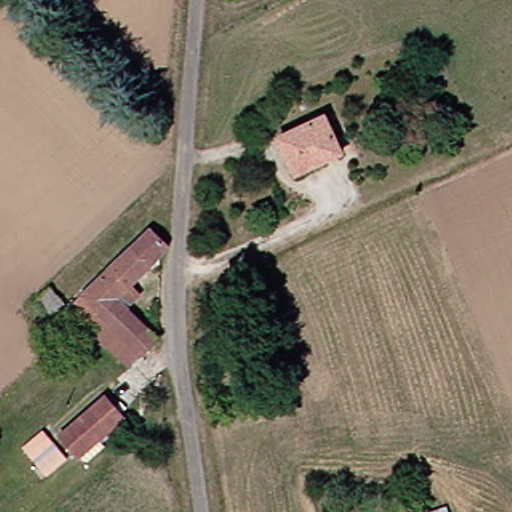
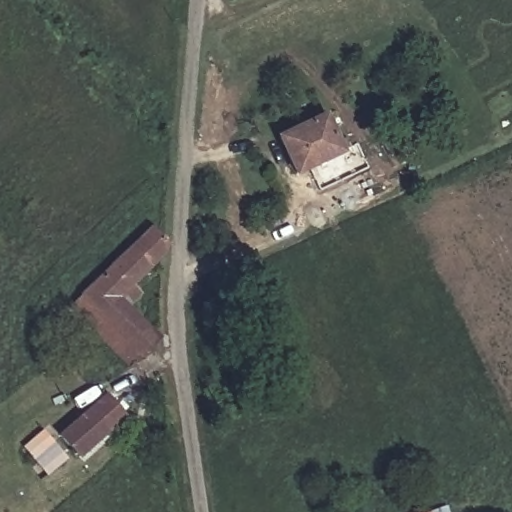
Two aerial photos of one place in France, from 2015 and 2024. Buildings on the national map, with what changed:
unchanged [(279,138),(325,116),(342,153),(296,175),(279,138)]
unchanged [(76,342),(86,332),(63,308),(145,227),(163,245),(161,253),(155,259),(127,286),(135,295),(122,305),(155,338),(123,370),(111,381),(76,342)]
unchanged [(125,418),(80,459),(60,436),(106,396),(125,418)]
unchanged [(53,440),(64,453),(43,471),(32,458),(53,440)]
unchanged [(442,512),(428,512),(440,507),(442,512)]

